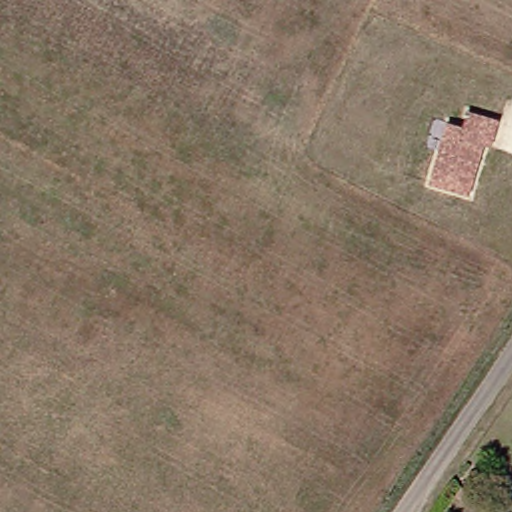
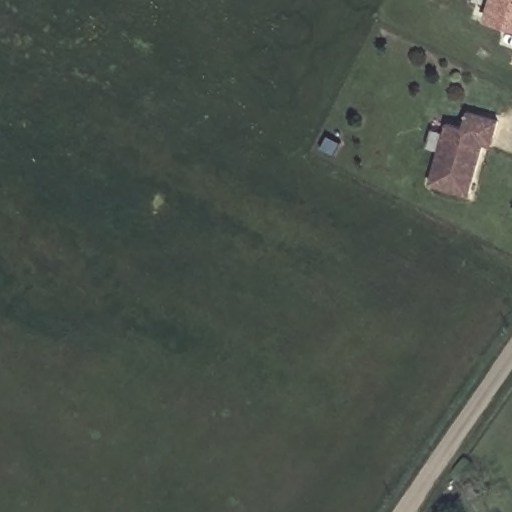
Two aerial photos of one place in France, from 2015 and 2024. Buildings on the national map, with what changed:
new [(485,19),(490,0),(512,0),(512,26),(485,19)]
unchanged [(429,184),(444,122),(460,126),(463,110),(495,118),(490,134),(488,143),(480,142),(468,193),(429,184)]

